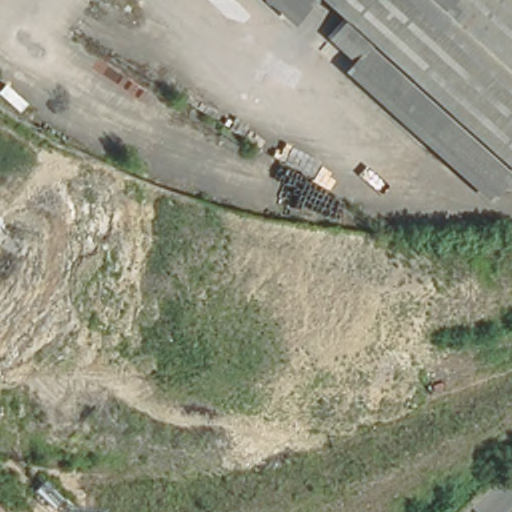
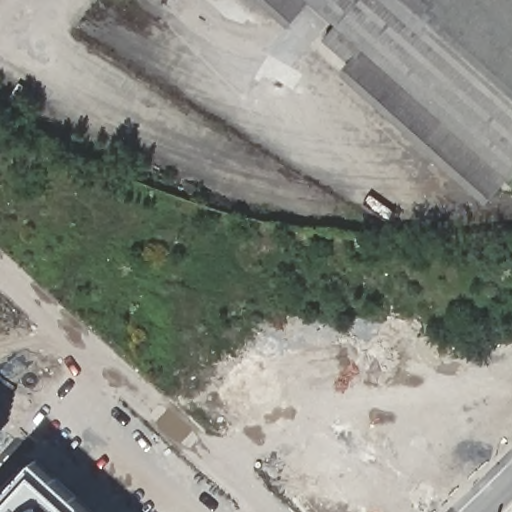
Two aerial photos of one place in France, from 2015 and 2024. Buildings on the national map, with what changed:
unchanged [(292,26),(263,0),(315,0),(292,26)]
unchanged [(371,46),(357,63),(330,39),(345,23),(319,0),(512,0),(512,172),(371,46)]
unchanged [(490,204),(346,75),(357,63),(371,46),(512,172),(512,179),(490,204)]
new [(37,460),(94,512),(0,512),(0,501),(37,460)]

